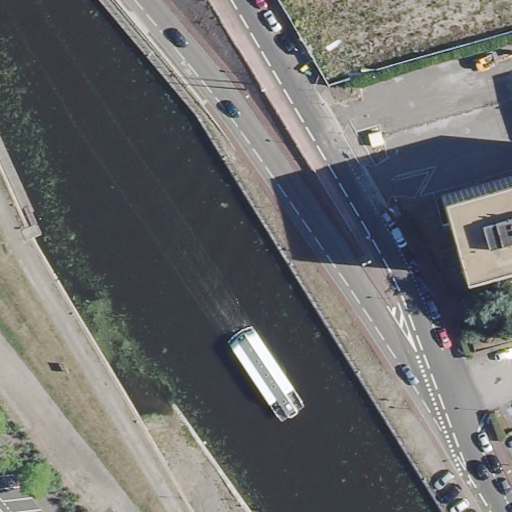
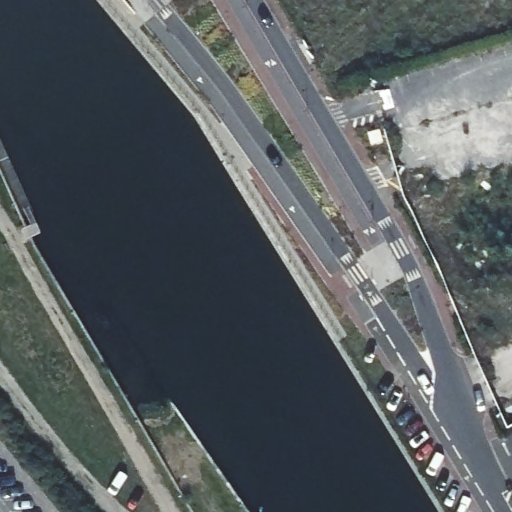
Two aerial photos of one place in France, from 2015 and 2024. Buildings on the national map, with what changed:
demolished [(461,275),(440,195),(512,175),(512,263),(461,275)]
demolished [(511,280),(512,280),(512,284),(511,280)]

